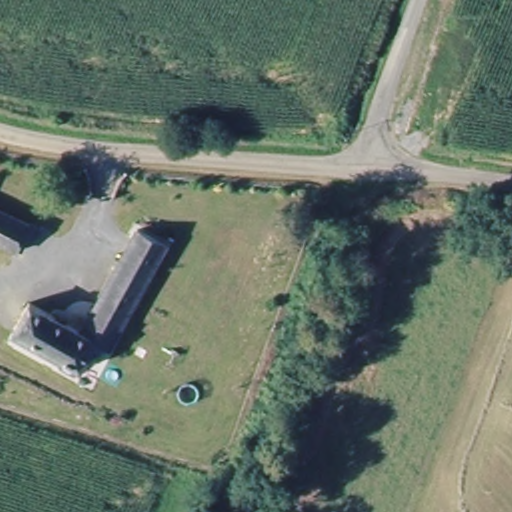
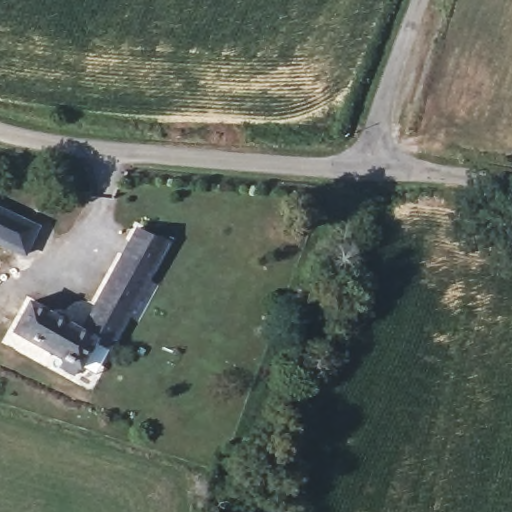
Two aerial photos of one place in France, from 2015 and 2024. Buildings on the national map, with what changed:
unchanged [(30,225),(17,248),(0,239),(0,211),(30,225)]
unchanged [(22,311),(0,298),(0,290),(2,287),(81,333),(115,272),(137,231),(166,247),(109,350),(95,343),(78,372),(9,333),(22,311)]

